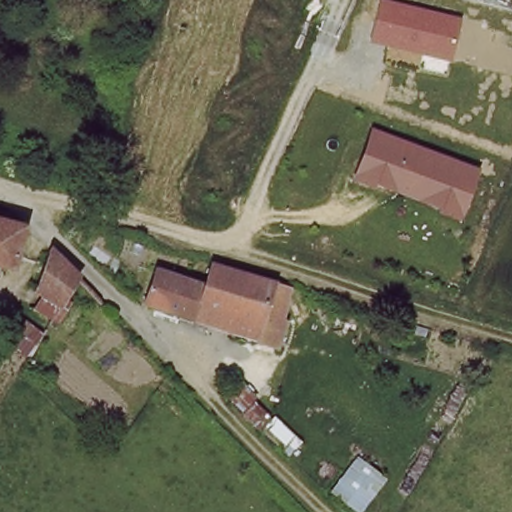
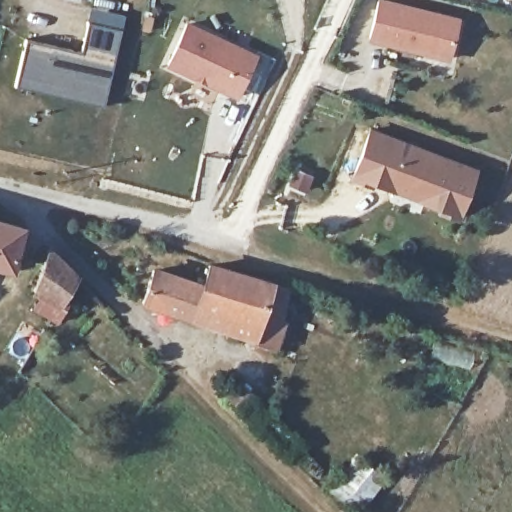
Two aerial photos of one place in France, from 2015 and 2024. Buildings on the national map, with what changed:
unchanged [(379,0),(384,0),(459,16),(450,60),(369,40),(379,0)]
new [(80,53),(89,7),(122,15),(99,105),(12,83),(24,39),(80,53)]
new [(166,67),(185,22),(257,54),(236,99),(166,67)]
unchanged [(352,176),(369,130),(478,169),(460,219),(352,176)]
unchanged [(2,273),(0,273),(0,218),(17,222),(2,273)]
unchanged [(36,287),(47,245),(65,266),(70,271),(72,274),(55,301),(36,287)]
unchanged [(157,299),(170,264),(213,283),(218,267),(295,291),(276,353),(253,343),(209,323),(157,299)]
unchanged [(252,401),(271,420),(256,435),(239,416),(252,401)]
unchanged [(355,456),(384,476),(361,512),(352,512),(327,489),(355,456)]

